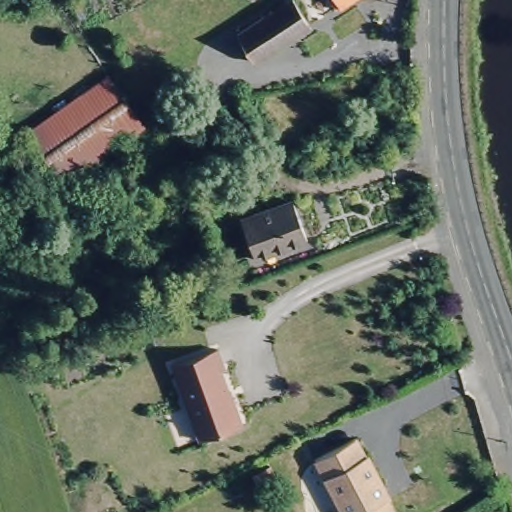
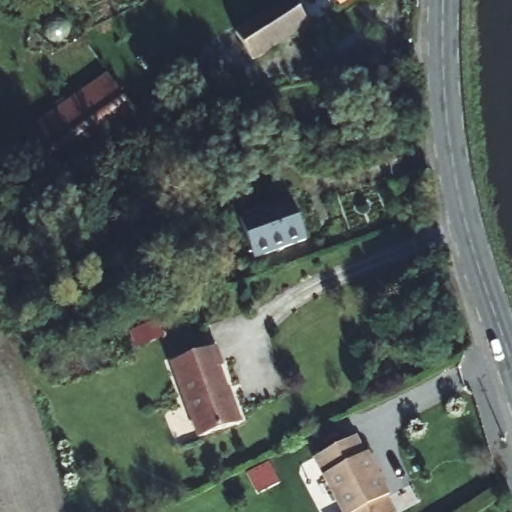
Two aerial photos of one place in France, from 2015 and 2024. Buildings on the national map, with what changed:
unchanged [(257,49),(244,21),(284,0),(355,0),(257,49)]
unchanged [(23,128),(65,105),(114,79),(142,131),(140,131),(67,169),(50,178),(26,133),(23,128)]
unchanged [(302,242),(247,256),(237,215),(292,202),(302,242)]
unchanged [(173,358),(217,346),(243,423),(200,437),(173,358)]
unchanged [(362,432),(370,450),(372,450),(392,491),(390,492),(400,512),(349,512),(320,451),(362,432)]

